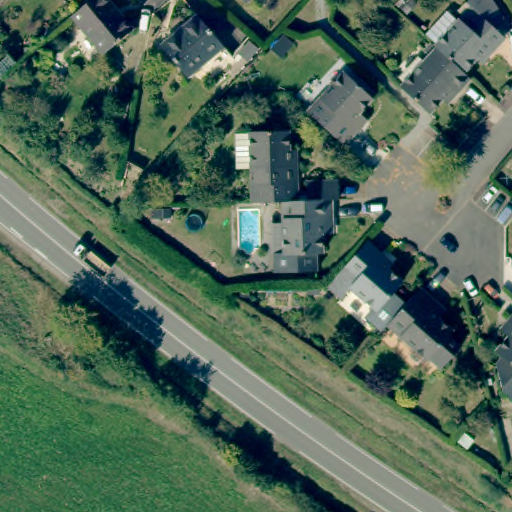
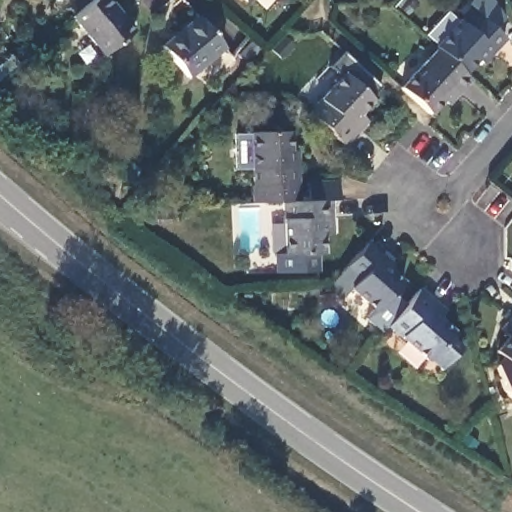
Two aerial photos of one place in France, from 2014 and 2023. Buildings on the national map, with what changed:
unchanged [(102,55),(70,16),(91,0),(107,0),(131,30),(102,55)]
unchanged [(238,0),(243,0),(241,2),(238,0)]
unchanged [(446,12),(456,22),(469,8),(464,4),(468,0),(488,0),(499,17),(490,27),(501,37),(478,62),(473,58),(460,72),(435,49),(433,46),(437,44),(426,34),(446,12)]
unchanged [(230,45),(185,79),(160,50),(194,12),(230,45)]
unchanged [(435,49),(460,72),(467,78),(444,104),(439,100),(426,114),(399,88),(435,49)]
unchanged [(338,70),(365,96),(352,110),(357,115),(347,126),(350,129),(338,142),(303,109),(338,70)]
unchanged [(246,170),(231,170),(230,135),(283,134),(283,152),(290,152),(291,201),(277,202),(247,202),(246,170)]
unchanged [(269,273),(269,254),(279,253),(277,202),(291,201),(303,201),(302,184),(331,183),(331,200),(325,200),(325,218),(320,218),(321,235),(315,235),(316,254),(310,255),(310,272),(269,273)]
unchanged [(379,333),(363,318),(371,310),(347,287),(339,297),(326,285),(343,266),(365,242),(390,265),(386,270),(401,283),(391,294),(403,305),(386,325),(379,333)]
unchanged [(440,369),(428,358),(426,360),(386,325),(403,305),(418,288),(444,310),(437,319),(451,331),(447,336),(459,347),(440,369)]
unchanged [(512,319),(512,320),(511,320),(512,319)]
unchanged [(496,367),(503,359),(496,353),(509,338),(504,334),(512,325),(512,400),(501,391),(496,367)]

